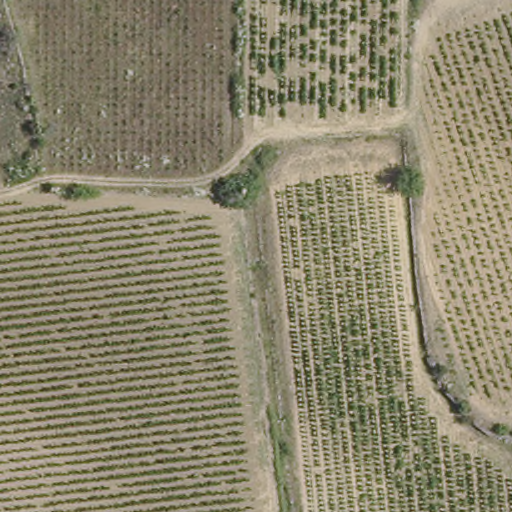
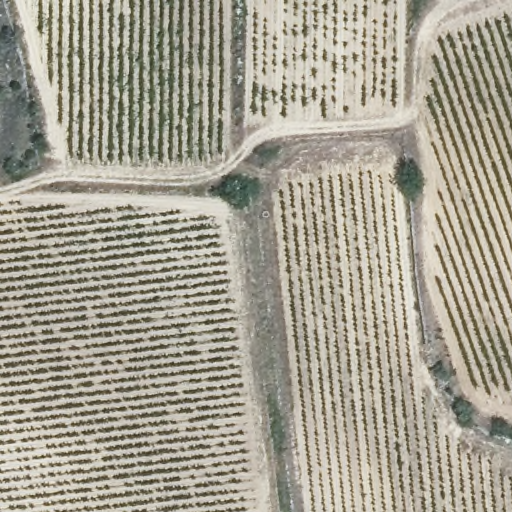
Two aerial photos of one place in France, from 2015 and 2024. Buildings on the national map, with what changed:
[]

